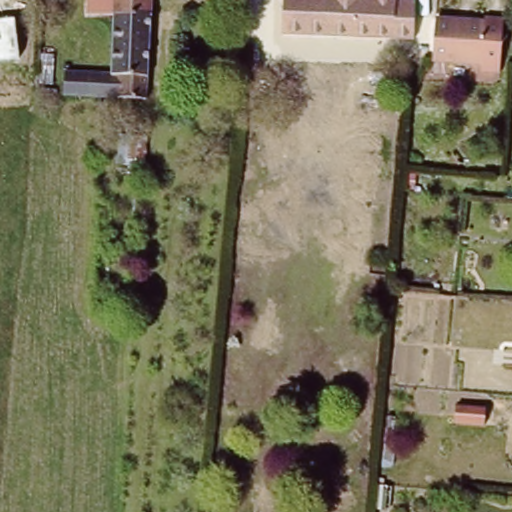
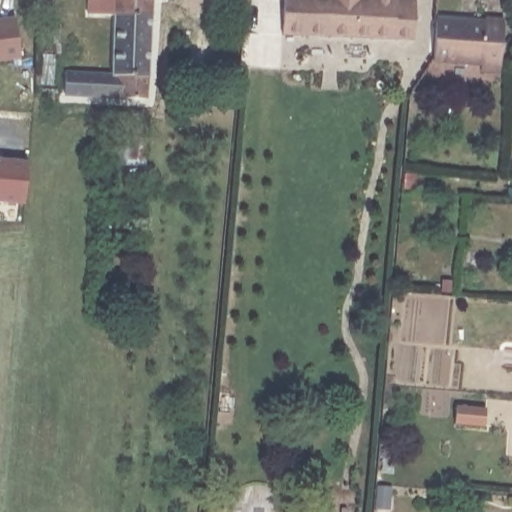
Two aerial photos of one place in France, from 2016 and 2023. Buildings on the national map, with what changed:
unchanged [(138,110),(137,99),(72,96),(72,73),(120,71),(120,14),(95,14),(95,0),(153,0),(152,111),(138,110)]
unchanged [(417,29),(398,29),(398,41),(283,38),(283,0),(410,0),(417,1),(417,29)]
unchanged [(485,18),(485,16),(502,17),(498,75),(480,73),(480,63),(432,60),(435,16),(485,18)]
unchanged [(15,19),(20,59),(0,61),(0,20),(15,19)]
demolished [(313,71),(336,71),(337,95),(312,95),(313,71)]
new [(27,161),(27,204),(0,202),(0,159),(27,161)]

